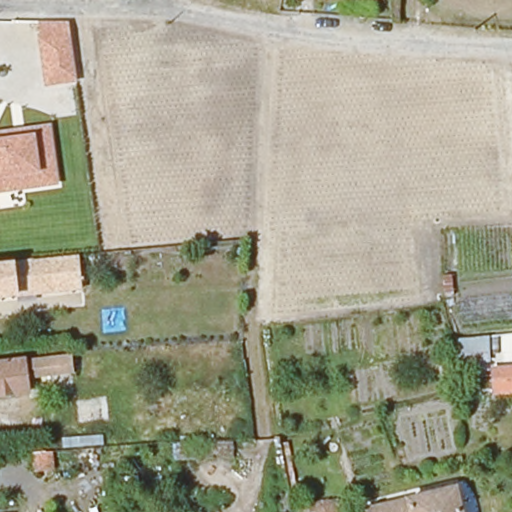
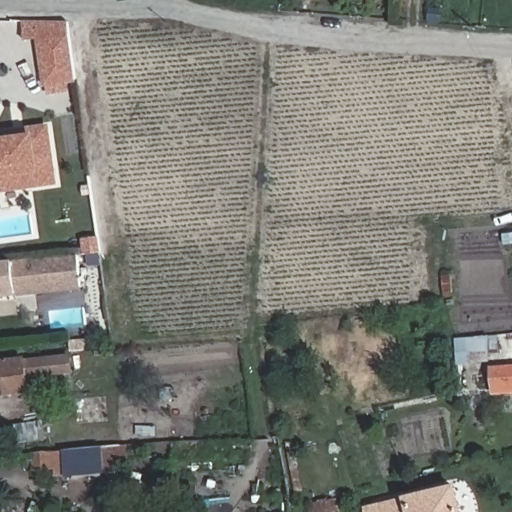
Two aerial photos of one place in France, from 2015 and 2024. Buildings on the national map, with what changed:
unchanged [(78,84),(45,88),(35,22),(69,22),(78,84)]
unchanged [(0,195),(0,130),(52,123),(61,186),(0,195)]
unchanged [(11,265),(76,259),(79,295),(14,301),(11,265)]
unchanged [(14,301),(0,302),(0,266),(11,265),(14,301)]
unchanged [(462,352),(480,351),(482,368),(464,370),(462,352)]
unchanged [(27,379),(28,392),(0,395),(0,365),(67,358),(70,357),(72,375),(27,379)]
unchanged [(492,394),(490,373),(512,370),(512,392),(492,394)]
unchanged [(176,444),(234,441),(234,457),(176,460),(176,444)]
new [(32,455),(129,444),(131,457),(117,458),(119,471),(55,478),(54,470),(34,472),(32,455)]
unchanged [(459,488),(464,512),(371,512),(371,510),(397,503),(459,488)]
unchanged [(340,512),(313,512),(311,502),(338,498),(340,512)]

